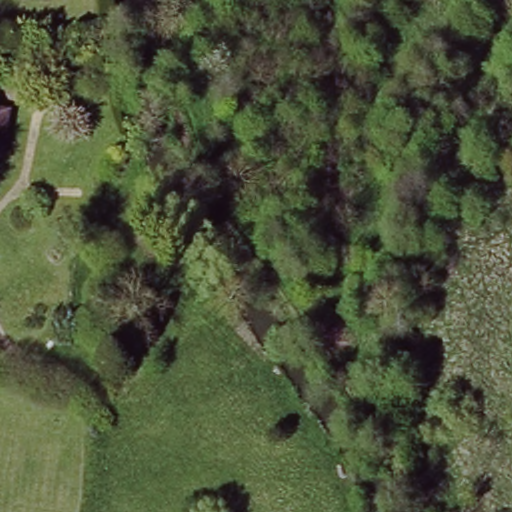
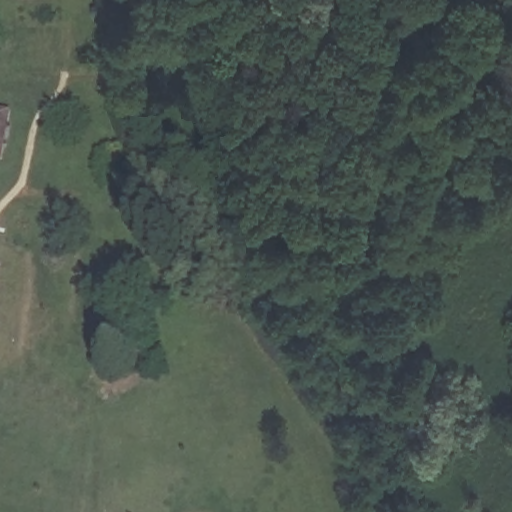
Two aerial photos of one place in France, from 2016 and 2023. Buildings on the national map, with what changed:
unchanged [(5,111),(0,152),(0,110),(5,111)]

